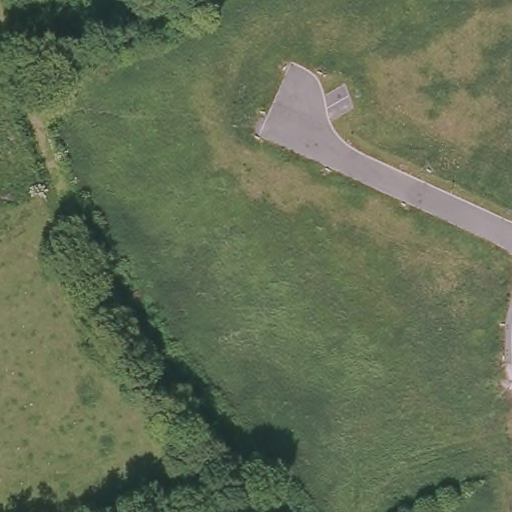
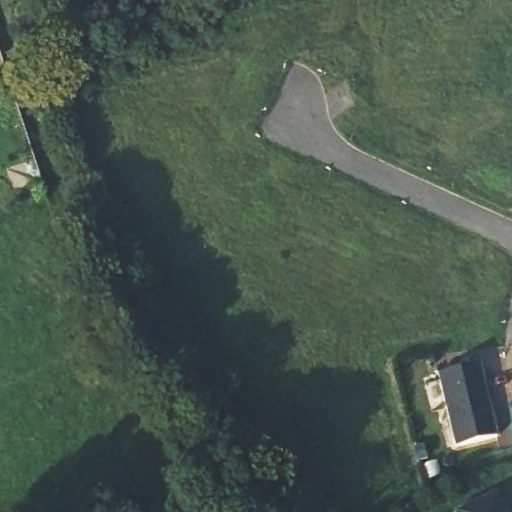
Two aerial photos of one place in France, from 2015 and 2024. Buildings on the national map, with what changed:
unchanged [(135,26),(95,50),(86,36),(105,24),(99,12),(120,0),(135,26)]
new [(479,365),(497,436),(454,447),(437,377),(479,365)]
new [(506,512),(457,512),(496,492),(506,512)]

